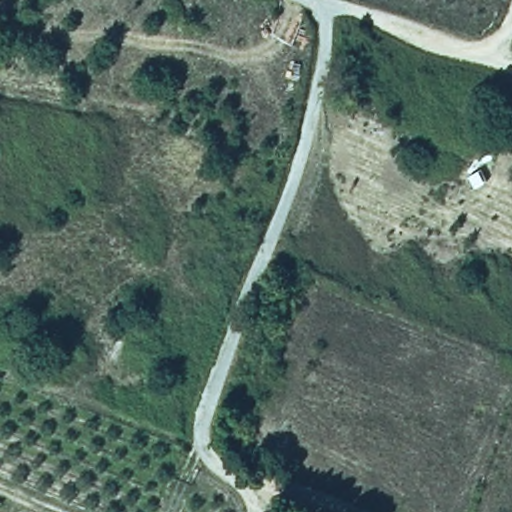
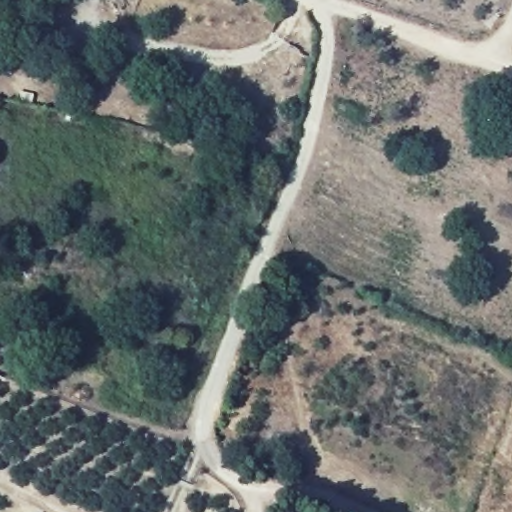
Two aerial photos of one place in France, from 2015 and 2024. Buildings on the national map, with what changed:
[]

